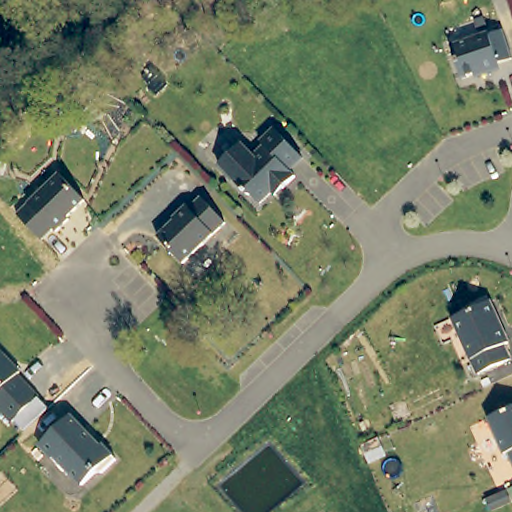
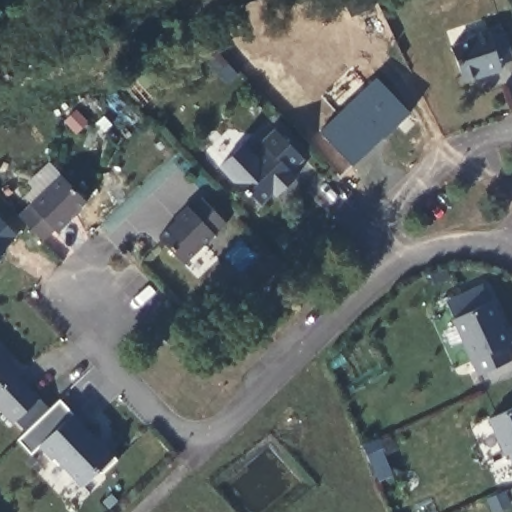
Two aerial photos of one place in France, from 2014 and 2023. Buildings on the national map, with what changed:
unchanged [(487,39),(502,35),(511,62),(498,66),(499,72),(474,80),(473,78),(460,82),(449,49),(487,37),(487,39)]
new [(409,112),(352,167),(319,131),(375,76),(409,112)]
unchanged [(253,199),(251,200),(235,185),(220,166),(243,142),(258,158),(255,161),(266,150),(262,146),(275,133),(304,163),(292,175),(297,180),(285,192),(282,189),(275,196),(263,208),(253,199)]
unchanged [(61,214),(63,216),(49,229),(46,226),(35,236),(11,210),(53,170),(79,197),(61,214)]
unchanged [(187,206),(190,210),(201,199),(226,224),(184,265),(159,238),(177,221),(175,219),(187,206)]
unchanged [(509,343),(504,345),(510,360),(478,374),(453,318),(490,301),(509,343)]
unchanged [(0,410),(0,353),(21,375),(18,378),(40,400),(15,425),(0,410)]
unchanged [(503,453),(487,416),(512,405),(512,463),(507,451),(503,453)]
unchanged [(42,448),(73,418),(102,447),(103,446),(118,461),(102,477),(99,473),(85,487),(57,458),(54,461),(42,448)]

